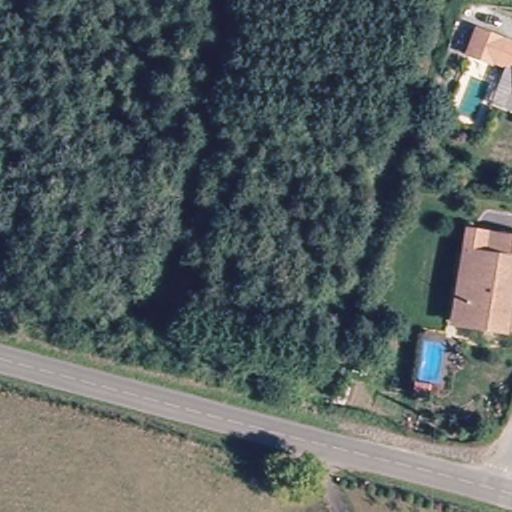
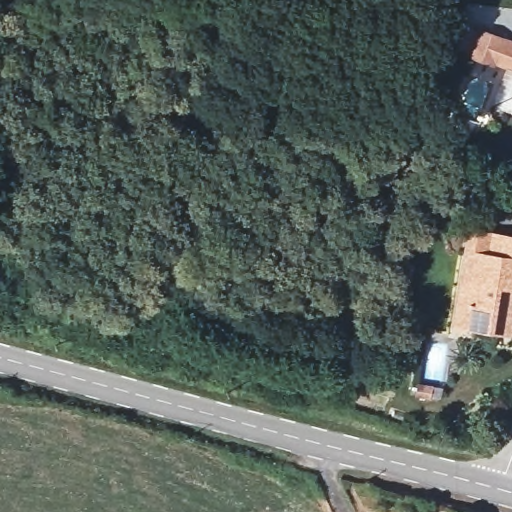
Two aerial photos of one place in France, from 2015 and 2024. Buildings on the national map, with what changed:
unchanged [(512,38),(512,112),(491,105),(504,69),(463,56),(475,24),(512,38)]
unchanged [(512,329),(511,333),(467,329),(457,328),(463,276),(465,256),(489,257),(491,238),(512,239),(512,329)]

